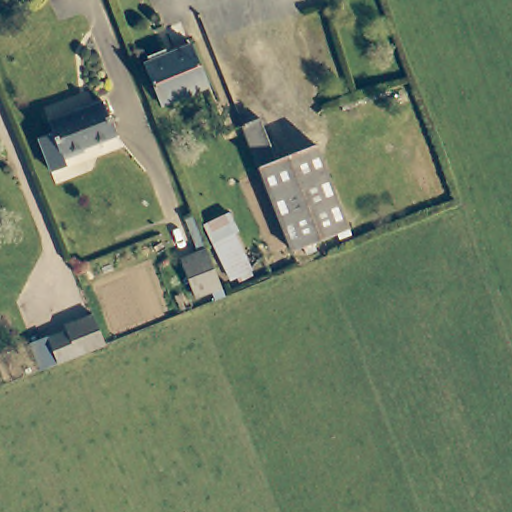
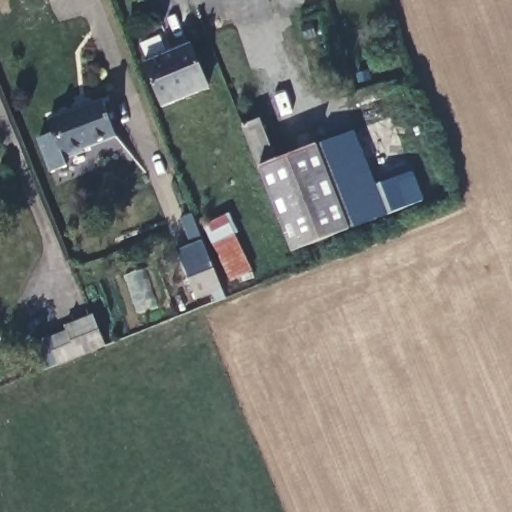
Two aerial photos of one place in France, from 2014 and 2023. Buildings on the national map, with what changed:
unchanged [(145,66),(188,47),(208,89),(164,109),(145,66)]
unchanged [(115,140),(81,154),(82,158),(64,166),(49,125),(102,105),(115,140)]
unchanged [(290,250),(239,125),(258,117),(276,158),(312,144),(348,227),(290,250)]
new [(312,144),(357,131),(377,185),(415,171),(426,200),(348,227),(312,144)]
unchanged [(215,249),(235,240),(250,278),(231,286),(215,249)]
unchanged [(221,285),(197,295),(182,258),(206,248),(221,285)]
unchanged [(106,346),(58,365),(49,342),(66,335),(64,328),(94,315),(106,346)]

